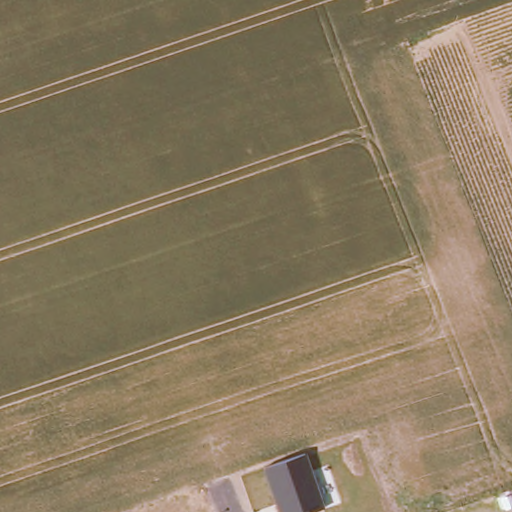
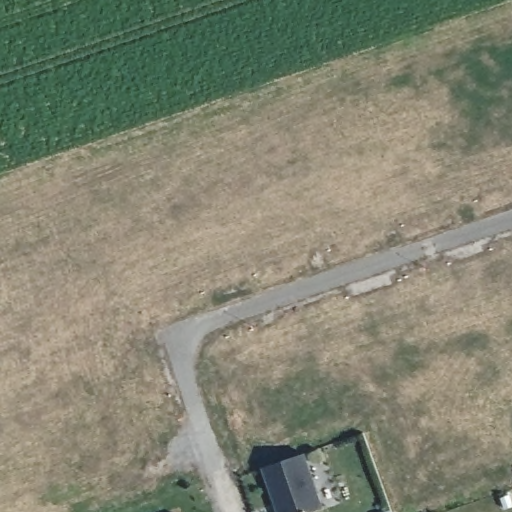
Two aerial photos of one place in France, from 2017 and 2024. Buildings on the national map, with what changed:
unchanged [(321,509),(312,512),(281,512),(264,467),(302,453),(321,509)]

